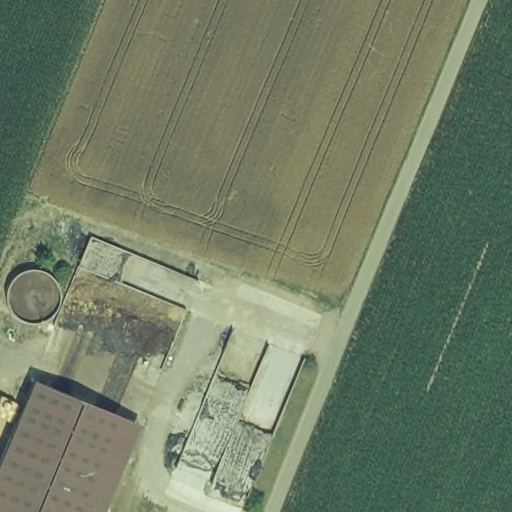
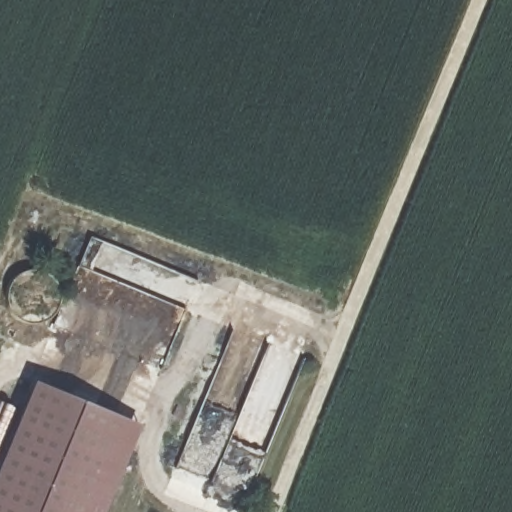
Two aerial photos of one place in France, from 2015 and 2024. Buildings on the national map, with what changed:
unchanged [(35,381),(145,424),(109,512),(0,512),(0,463),(35,381)]

